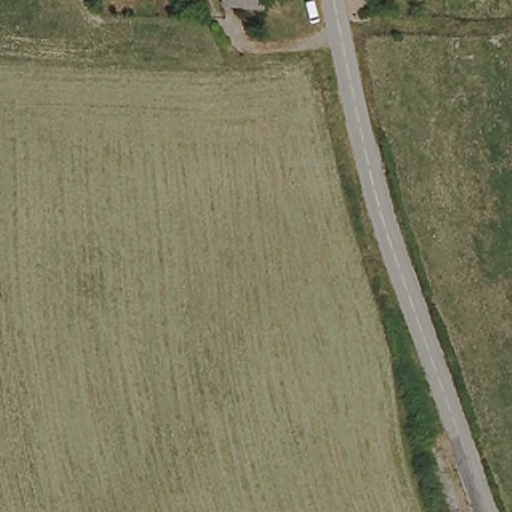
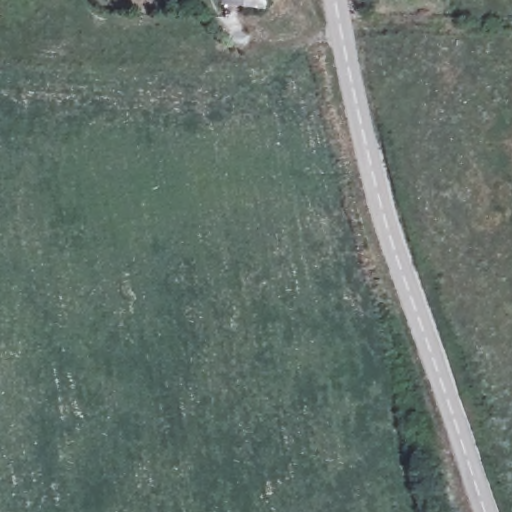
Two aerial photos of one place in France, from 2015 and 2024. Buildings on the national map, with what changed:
unchanged [(266,0),(266,9),(224,5),(224,0),(266,0)]

